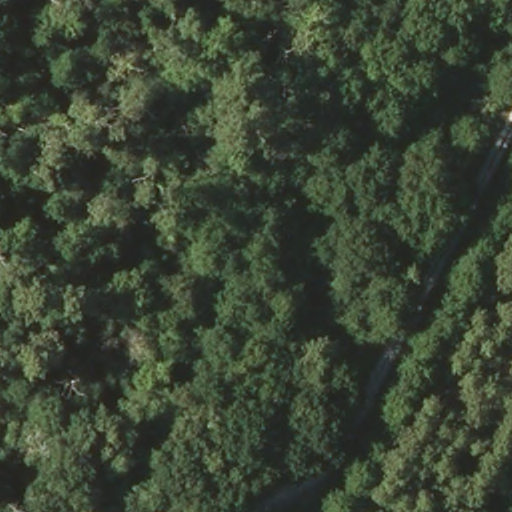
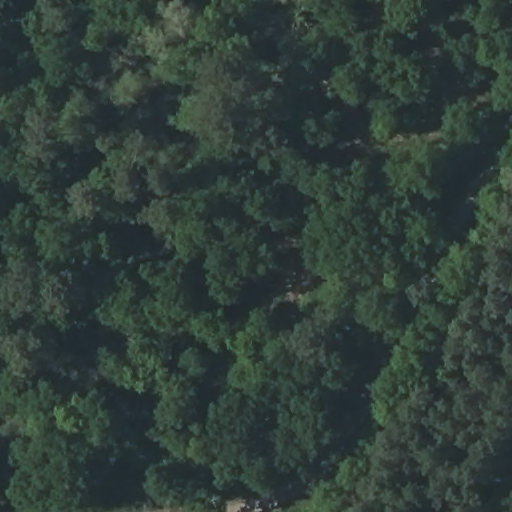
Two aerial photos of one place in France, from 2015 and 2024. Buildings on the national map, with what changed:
[]

